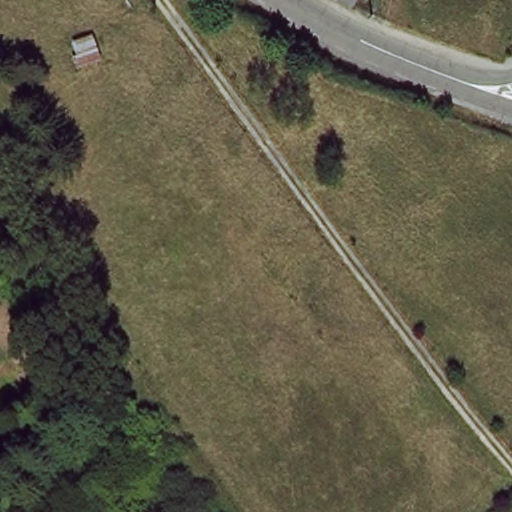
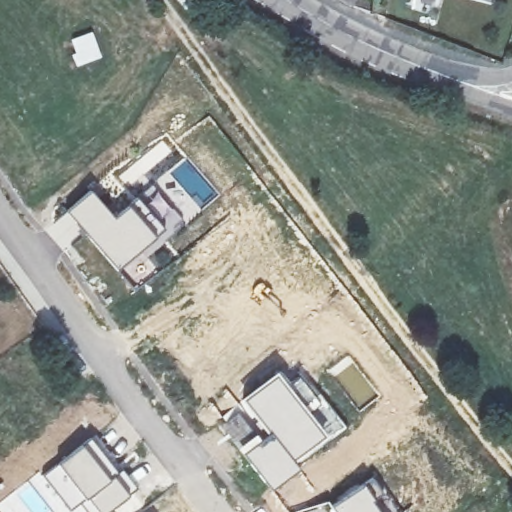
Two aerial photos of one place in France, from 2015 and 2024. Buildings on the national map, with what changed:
unchanged [(359,0),(357,5),(349,0),(359,0)]
new [(136,285),(121,268),(117,272),(70,219),(65,225),(70,230),(62,237),(67,243),(61,248),(45,230),(90,190),(113,216),(138,196),(151,185),(184,224),(148,257),(158,268),(136,285)]
new [(269,491),(235,447),(217,422),(238,403),(276,370),(285,381),(299,370),(346,427),(295,464),(298,468),(269,491)]
new [(129,495),(132,498),(135,496),(142,506),(134,512),(124,512),(119,504),(107,512),(87,512),(81,504),(71,512),(68,512),(41,476),(56,463),(91,436),(118,472),(136,489),(129,495)]
new [(362,484),(379,512),(333,512),(330,506),(362,484)]

